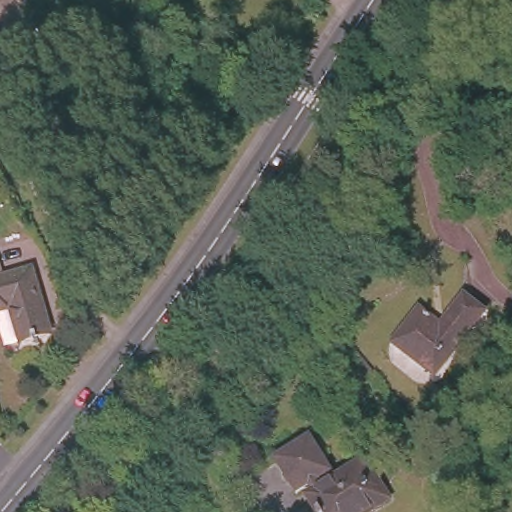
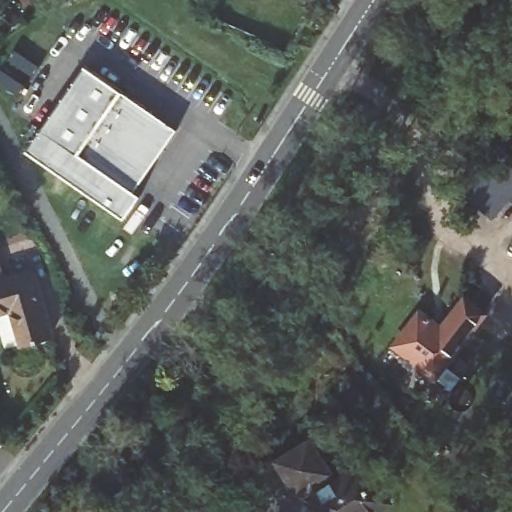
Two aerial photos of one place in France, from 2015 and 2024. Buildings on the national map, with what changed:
new [(130,190),(138,195),(125,216),(27,150),(85,66),(118,90),(175,131),(130,190)]
unchanged [(26,268),(42,331),(15,337),(7,303),(0,305),(0,274),(26,268)]
unchanged [(432,380),(392,347),(418,317),(439,333),(465,303),(484,320),(432,380)]
unchanged [(309,432),(330,469),(314,478),(318,486),(310,491),(305,483),(293,490),(272,453),(309,432)]
unchanged [(313,510),(316,508),(307,492),(310,491),(318,486),(360,460),(382,497),(363,509),(365,511),(363,512),(315,512),(313,510)]

